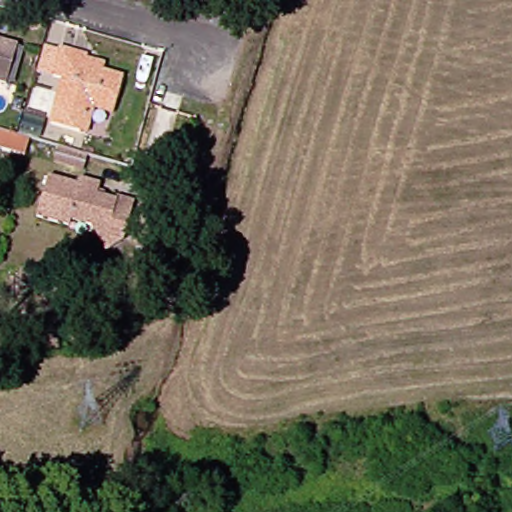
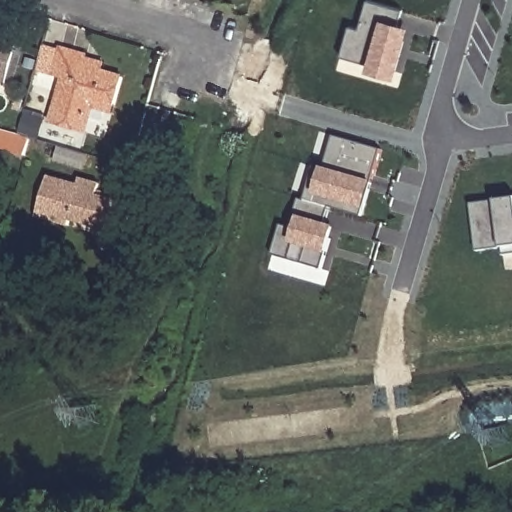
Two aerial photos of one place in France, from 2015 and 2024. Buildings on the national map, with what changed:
new [(358,29),(366,0),(402,10),(398,25),(407,29),(404,42),(395,72),(340,56),(349,26),(358,29)]
unchanged [(13,47),(3,85),(0,84),(0,43),(13,47)]
unchanged [(83,59),(80,67),(98,73),(119,79),(111,109),(84,101),(75,134),(46,125),(58,80),(49,77),(29,71),(37,44),(57,50),(83,57),(83,59)]
unchanged [(16,140),(30,145),(22,174),(0,168),(0,136),(16,140)]
new [(281,225),(291,227),(299,199),(304,200),(314,167),(324,170),(333,136),(381,150),(362,217),(330,208),(322,237),(331,239),(322,270),(273,255),(281,225)]
unchanged [(81,185),(100,190),(98,202),(117,207),(119,204),(135,209),(125,242),(92,232),(72,226),(70,232),(38,223),(49,183),(79,191),(81,185)]
new [(512,256),(505,256),(504,249),(479,252),(472,205),(512,199),(512,256)]

